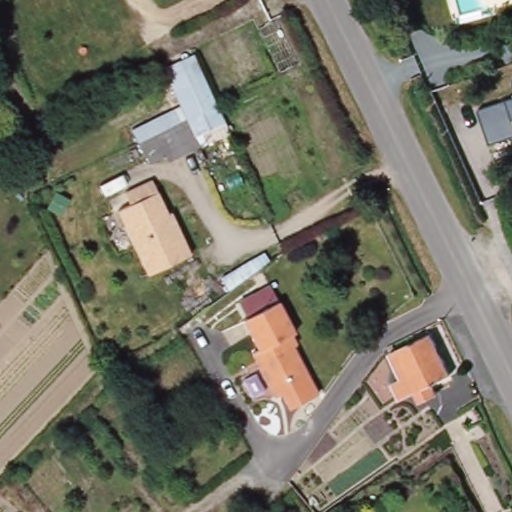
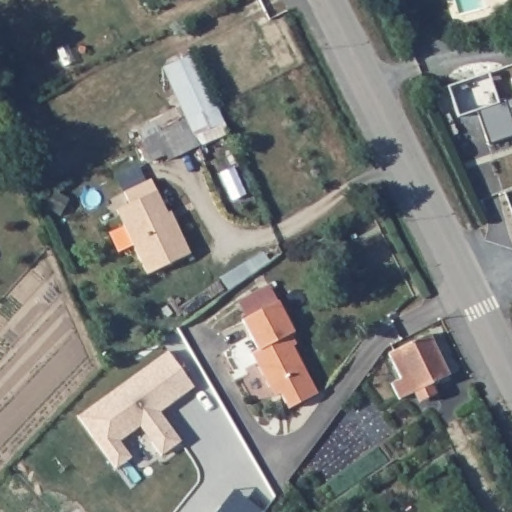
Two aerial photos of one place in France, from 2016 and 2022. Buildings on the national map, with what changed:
unchanged [(216,111),(228,137),(199,151),(187,125),(164,72),(193,59),(216,111)]
unchanged [(512,99),(512,137),(489,145),(478,110),(512,99)]
new [(187,125),(199,151),(166,164),(146,164),(130,129),(179,106),(187,125)]
unchanged [(167,215),(170,213),(190,256),(147,276),(117,212),(130,205),(125,194),(151,181),(167,215)]
unchanged [(270,388),(251,353),(257,350),(242,321),(278,302),(290,322),(295,332),(288,336),(317,394),(289,410),(280,393),(275,397),(270,388)]
unchanged [(450,376),(432,385),(436,395),(420,403),(415,393),(400,401),(391,384),(400,379),(389,354),(430,335),(450,376)]
new [(196,386),(160,411),(184,443),(162,458),(140,428),(121,442),(131,458),(115,469),(78,417),(169,351),(196,386)]
demolished [(141,465),(130,474),(116,457),(127,447),(141,465)]

